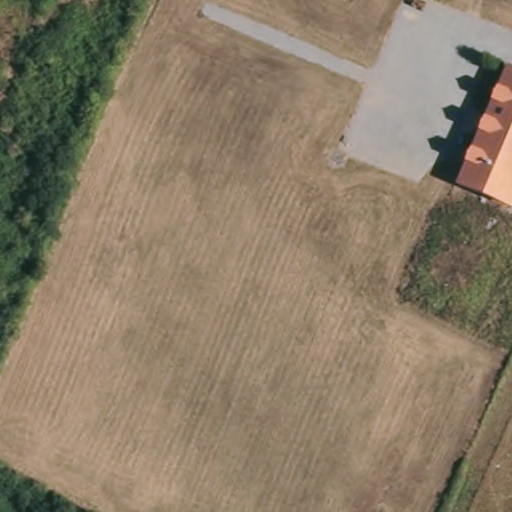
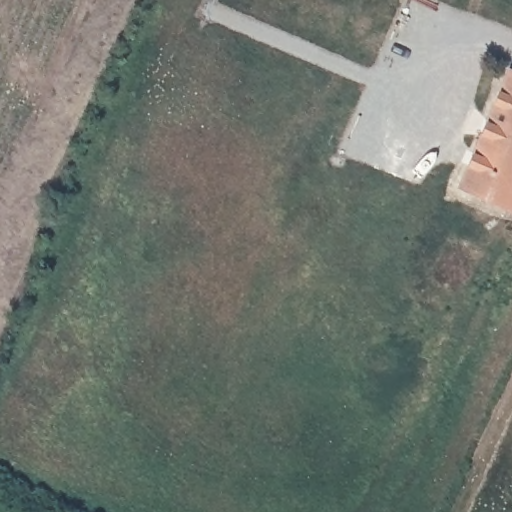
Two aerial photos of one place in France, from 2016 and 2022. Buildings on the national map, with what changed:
unchanged [(512,213),(457,187),(509,69),(512,70),(512,213)]

